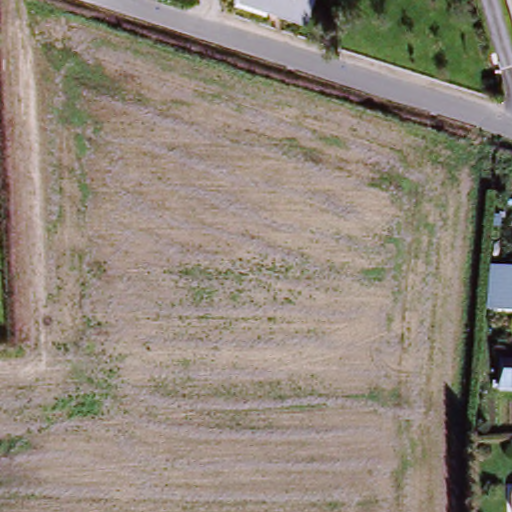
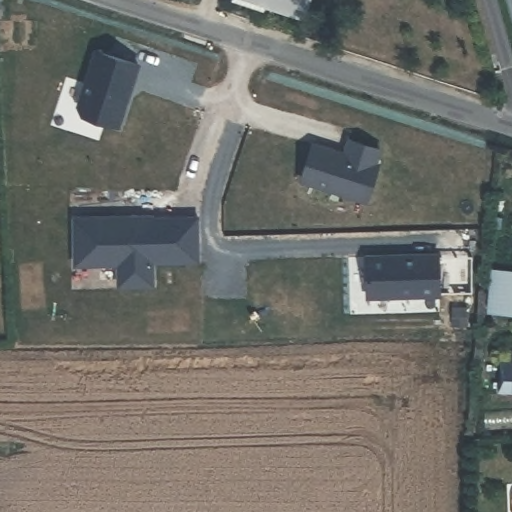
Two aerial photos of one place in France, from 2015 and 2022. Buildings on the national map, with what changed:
unchanged [(267,2),(265,6),(248,0),(306,0),(302,13),(267,2)]
new [(142,62),(119,128),(84,117),(76,106),(95,49),(142,62)]
new [(384,149),(367,203),(299,182),(313,141),(344,150),(347,137),(384,149)]
new [(150,216),(152,283),(119,284),(118,262),(75,263),(74,217),(150,216)]
new [(439,253),(440,293),(368,295),(367,256),(439,253)]
unchanged [(512,274),(512,314),(493,314),(494,274),(512,274)]
unchanged [(512,400),(499,400),(502,366),(512,366),(512,400)]

